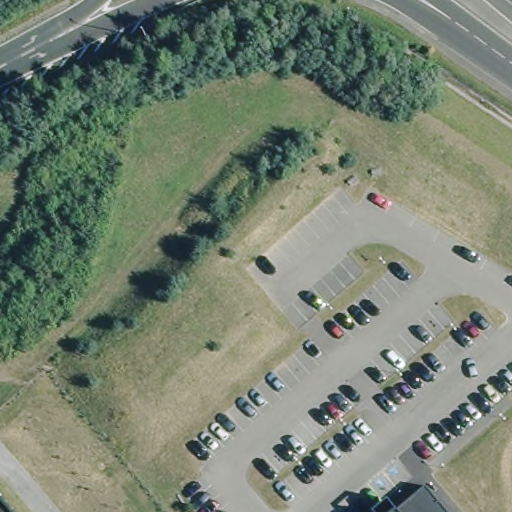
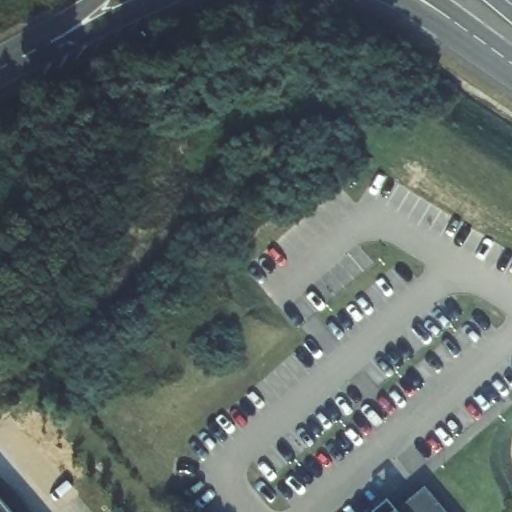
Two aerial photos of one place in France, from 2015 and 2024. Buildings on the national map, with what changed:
unchanged [(397,510),(427,487),(446,512),(373,512),(389,500),(397,510)]
unchanged [(12,512),(0,512),(0,498),(12,512)]

